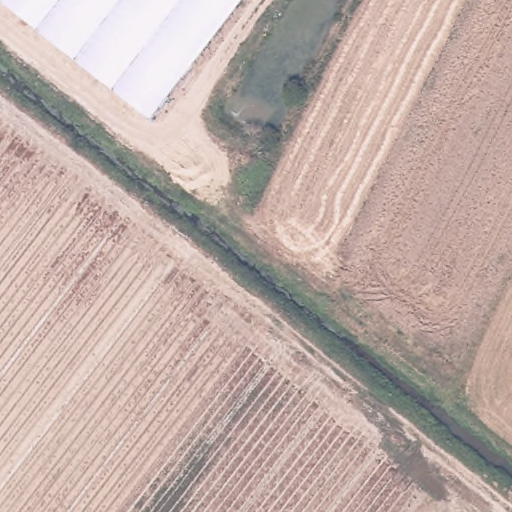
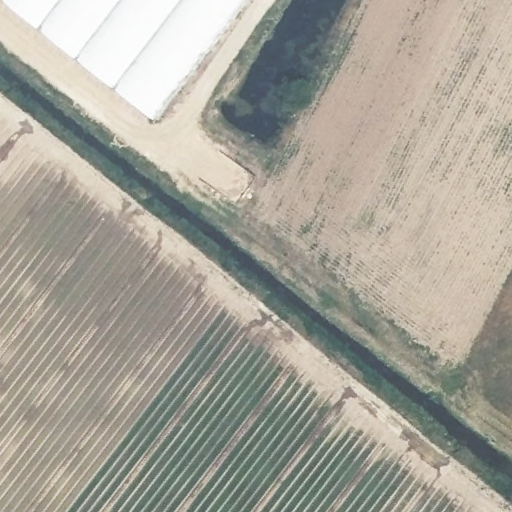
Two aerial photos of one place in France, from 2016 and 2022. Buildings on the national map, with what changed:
unchanged [(147,120),(0,3),(0,0),(238,0),(147,120)]

